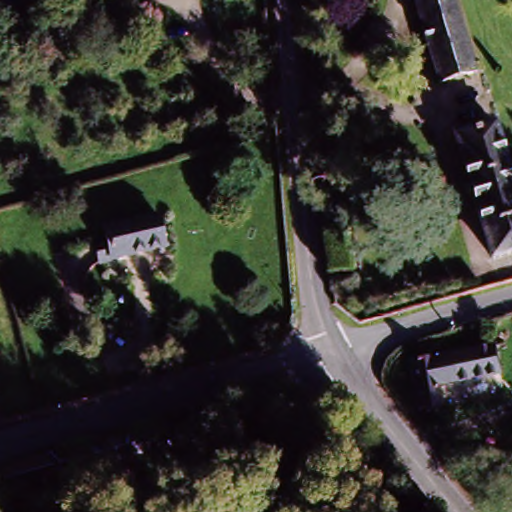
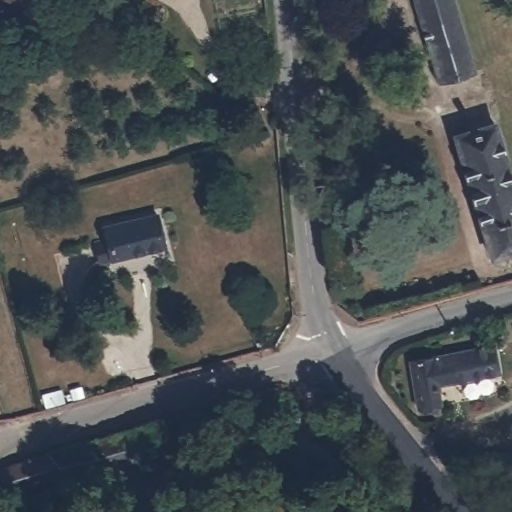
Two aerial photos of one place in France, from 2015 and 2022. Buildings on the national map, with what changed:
unchanged [(469,75),(432,87),(407,0),(447,0),(469,75)]
unchanged [(512,188),(512,254),(489,260),(452,137),(493,125),(512,188)]
unchanged [(95,244),(108,242),(104,226),(158,213),(166,247),(111,260),(99,264),(95,244)]
unchanged [(426,350),(488,345),(492,380),(430,386),(426,350)]
unchanged [(433,410),(413,412),(407,351),(426,350),(430,386),(433,410)]
unchanged [(2,466),(153,423),(160,450),(127,459),(128,467),(84,480),(81,468),(0,493),(0,468),(2,466)]

